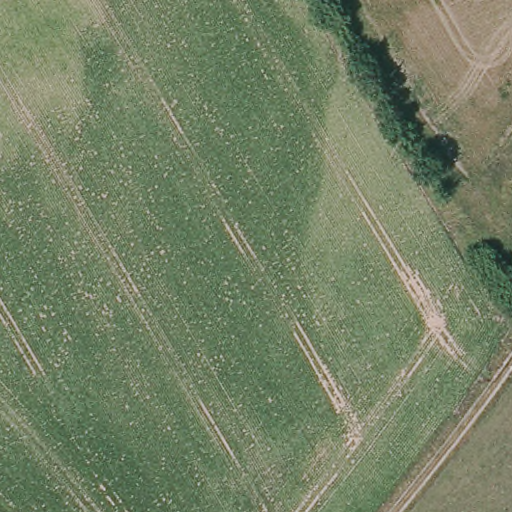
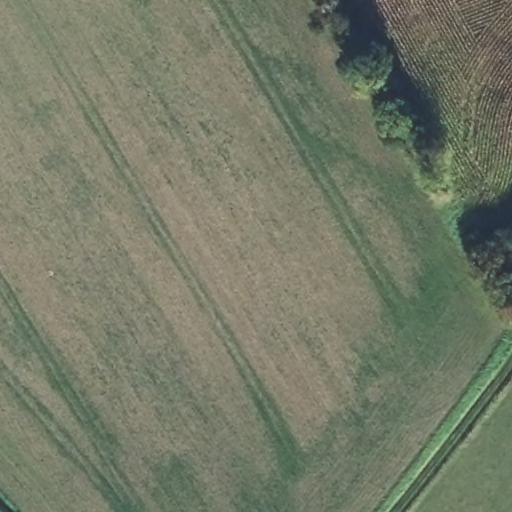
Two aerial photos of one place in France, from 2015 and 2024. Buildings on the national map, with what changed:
[]

